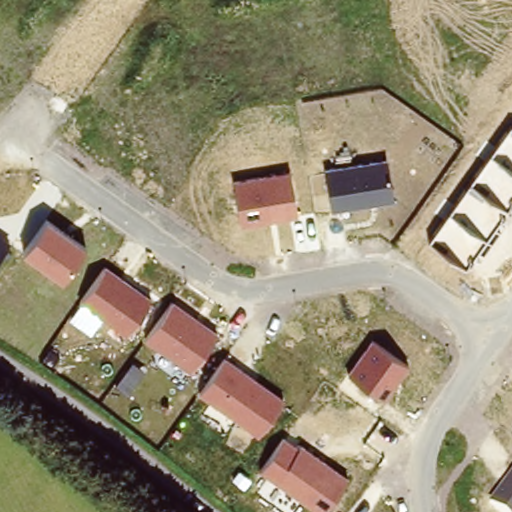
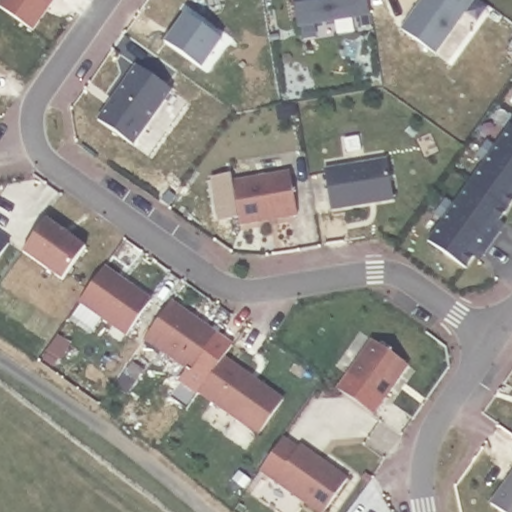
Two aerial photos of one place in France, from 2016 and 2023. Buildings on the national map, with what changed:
new [(55,0),(33,31),(0,7),(0,4),(3,0),(55,0)]
new [(298,27),(294,0),(368,0),(370,15),(298,27)]
new [(401,29),(422,0),(477,0),(437,54),(401,29)]
new [(203,70),(164,43),(186,12),(223,42),(203,70)]
new [(138,66),(172,90),(133,145),(98,120),(138,66)]
unchanged [(507,224),(479,263),(474,259),(468,269),(428,242),(510,125),(512,126),(512,205),(501,222),(507,224)]
unchanged [(325,168),(387,158),(392,198),(331,208),(325,168)]
unchanged [(233,179),(288,170),(294,214),(239,224),(233,179)]
unchanged [(21,254),(44,220),(84,249),(61,282),(21,254)]
unchanged [(8,242),(0,252),(0,237),(8,242)]
unchanged [(79,299),(104,264),(151,295),(125,332),(79,299)]
unchanged [(146,337),(173,299),(218,333),(190,369),(146,337)]
unchanged [(345,373),(368,338),(406,364),(384,399),(345,373)]
unchanged [(199,392),(224,357),(284,398),(259,434),(199,392)]
unchanged [(259,469),(285,433),(349,474),(324,512),(259,469)]
unchanged [(512,470),(512,512),(503,512),(489,502),(512,470)]

